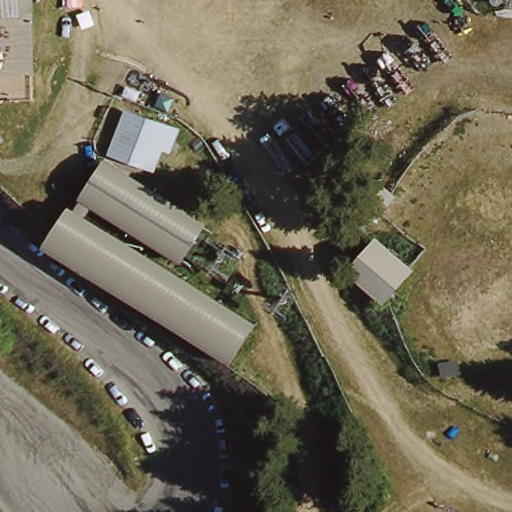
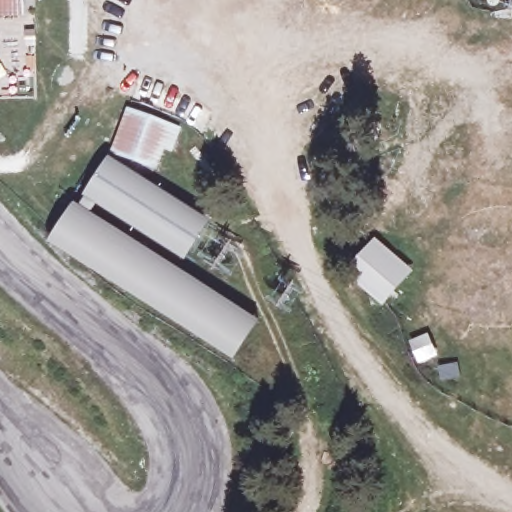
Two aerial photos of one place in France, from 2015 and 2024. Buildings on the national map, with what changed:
unchanged [(0,15),(0,0),(31,0),(32,12),(0,15)]
unchanged [(175,127),(167,145),(155,140),(147,160),(112,146),(127,108),(175,127)]
unchanged [(107,155),(210,222),(197,243),(185,262),(80,196),(107,155)]
unchanged [(72,201),(257,320),(232,363),(47,241),(72,201)]
unchanged [(377,239),(414,272),(388,302),(345,273),(377,239)]

